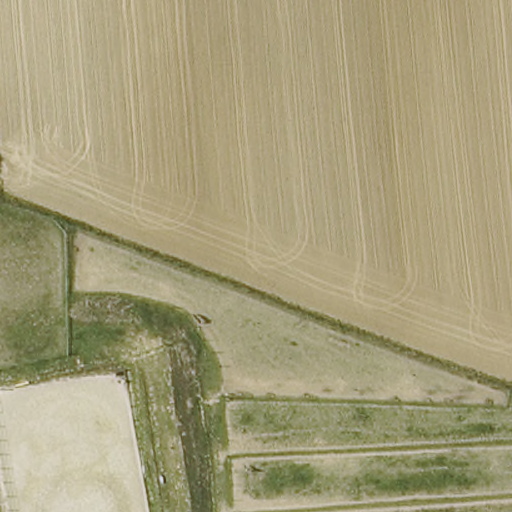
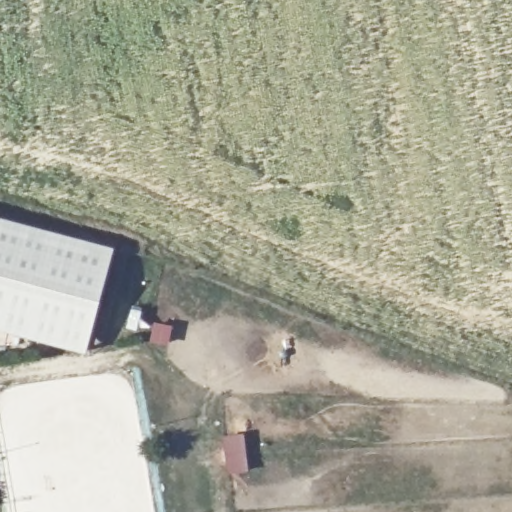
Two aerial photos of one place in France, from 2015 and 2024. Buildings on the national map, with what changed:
new [(115,248),(86,353),(0,330),(0,217),(115,248)]

